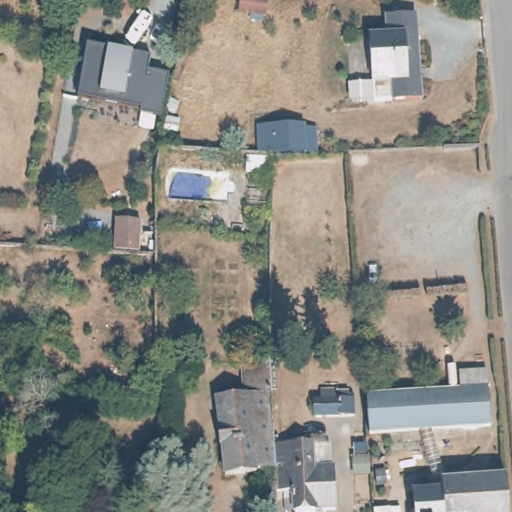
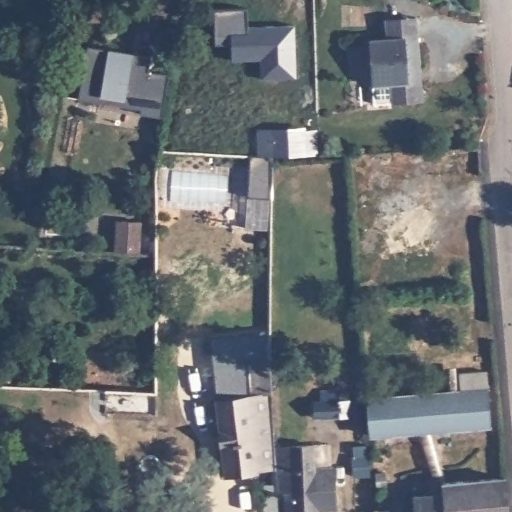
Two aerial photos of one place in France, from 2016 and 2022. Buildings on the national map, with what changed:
new [(296,81),(260,81),(259,61),(230,61),(230,44),(214,45),(212,9),(247,7),(247,27),(293,26),(296,81)]
unchanged [(387,37),(387,20),(417,21),(420,104),(361,106),(360,81),(371,77),(367,41),(387,37)]
unchanged [(87,47),(150,58),(147,72),(166,75),(161,117),(76,104),(87,47)]
unchanged [(256,126),(312,125),(315,156),(256,157),(256,126)]
new [(115,218),(140,220),(138,250),(113,248),(115,218)]
unchanged [(287,490),(275,492),(277,509),(258,510),(257,482),(272,480),(272,468),(272,467),(224,472),(215,395),(250,392),(246,358),(266,357),(270,446),(308,445),(310,467),(328,466),(332,511),(313,511),(314,512),(289,512),(287,490)]
unchanged [(423,431),(371,436),(370,422),(368,397),(460,390),(459,372),(487,371),(490,422),(490,426),(451,429),(423,431)]
unchanged [(154,415),(136,414),(108,413),(107,388),(153,390),(154,415)]
unchanged [(336,390),(337,402),(351,402),(351,416),(311,418),(309,403),(320,402),(319,390),(336,390)]
unchanged [(416,497),(434,494),(434,489),(433,482),(443,482),(451,481),(507,476),(510,512),(417,512),(416,497)]
unchanged [(376,506),(387,505),(387,512),(376,512),(376,506)]

